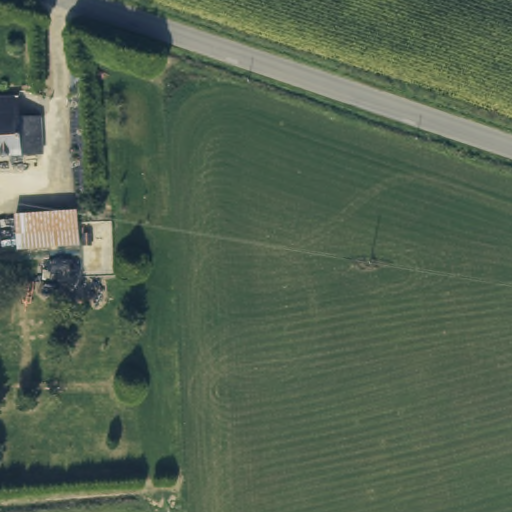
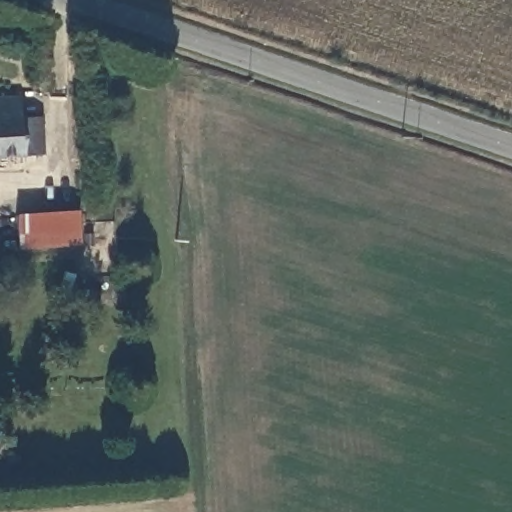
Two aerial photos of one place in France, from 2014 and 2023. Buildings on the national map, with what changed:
unchanged [(42,117),(43,152),(0,155),(0,96),(19,95),(21,116),(42,117)]
unchanged [(87,210),(87,241),(15,246),(13,217),(87,210)]

